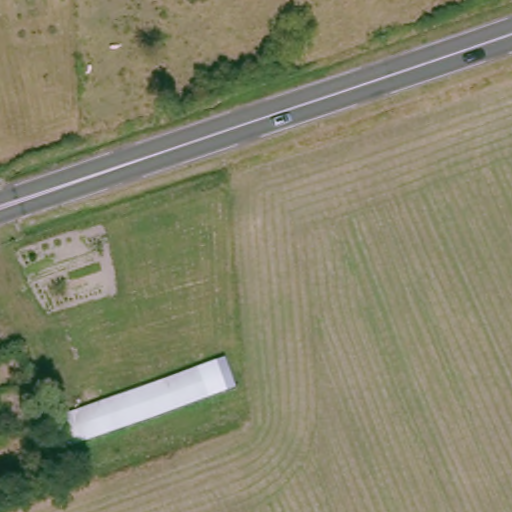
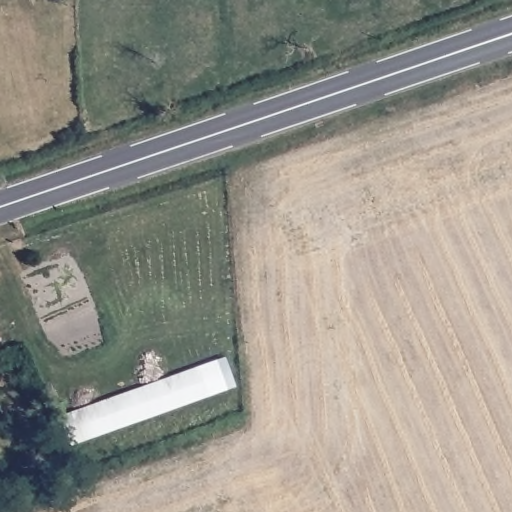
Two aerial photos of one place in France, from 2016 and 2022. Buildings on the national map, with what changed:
unchanged [(84,434),(76,408),(215,361),(225,389),(84,434)]

